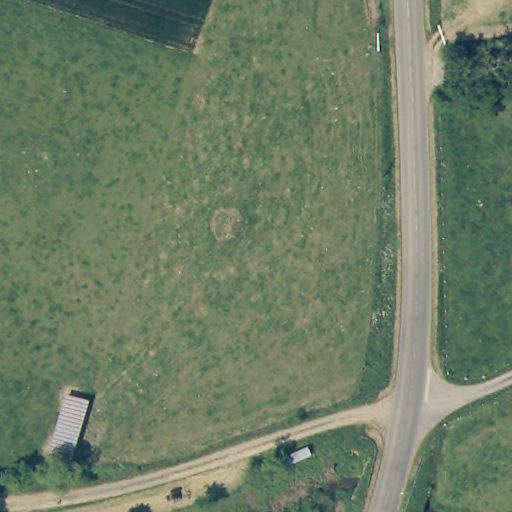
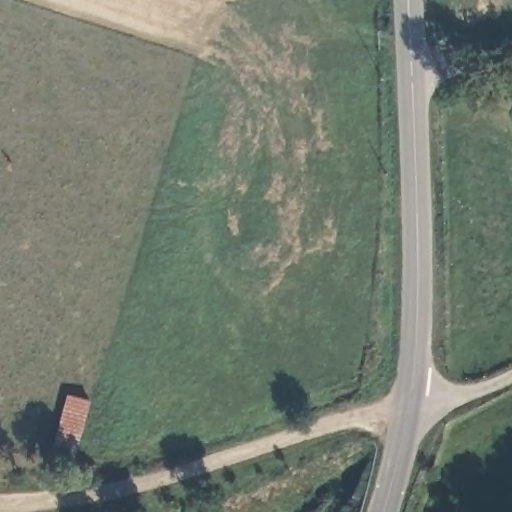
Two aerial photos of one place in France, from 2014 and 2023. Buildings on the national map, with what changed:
unchanged [(90,398),(75,459),(51,453),(67,393),(90,398)]

